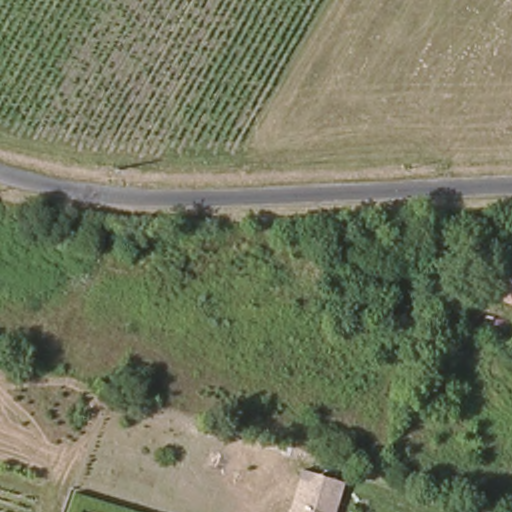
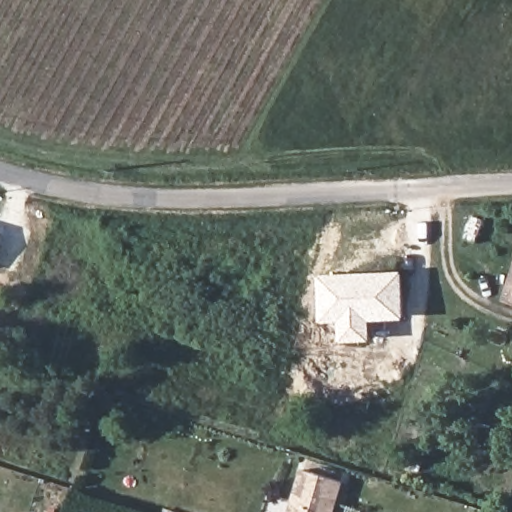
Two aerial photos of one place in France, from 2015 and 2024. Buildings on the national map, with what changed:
unchanged [(470,247),(464,244),(467,237),(463,235),(475,215),(483,220),(470,247)]
new [(371,320),(372,341),(340,342),(339,322),(321,323),(319,275),(404,270),(406,319),(371,320)]
unchanged [(505,303),(512,281),(512,306),(505,303)]
unchanged [(343,482),(334,512),(287,512),(300,469),(343,482)]

